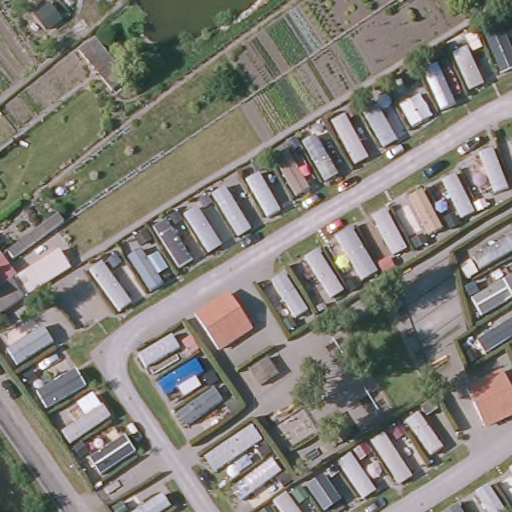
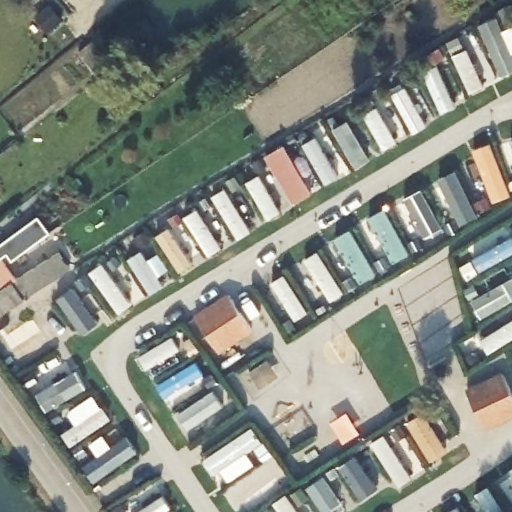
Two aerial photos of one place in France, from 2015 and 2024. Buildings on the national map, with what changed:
unchanged [(87,47),(120,90),(112,97),(77,55),(87,47)]
unchanged [(10,265),(5,257),(40,232),(47,241),(10,265)]
unchanged [(62,255),(73,271),(44,293),(0,324),(0,290),(5,297),(62,255)]
unchanged [(0,265),(0,260),(2,263),(0,265)]
unchanged [(0,275),(0,270),(2,273),(0,275)]
unchanged [(250,331),(218,351),(197,316),(230,296),(250,331)]
unchanged [(502,371),(512,387),(512,408),(489,423),(469,392),(502,371)]

